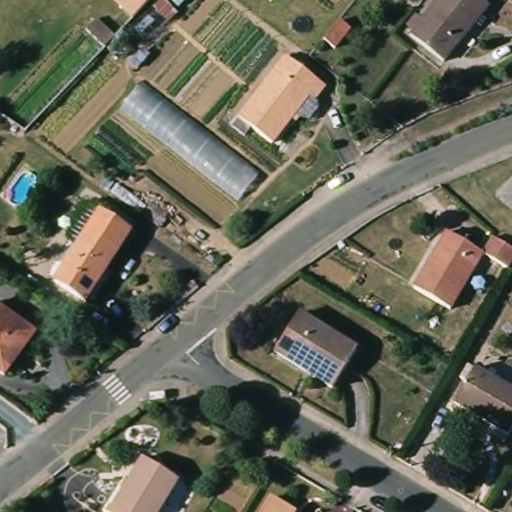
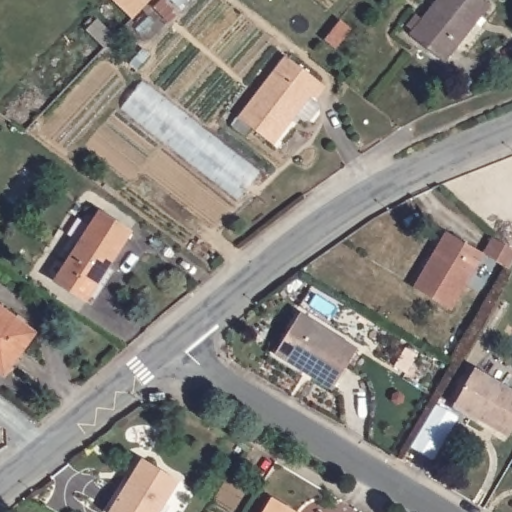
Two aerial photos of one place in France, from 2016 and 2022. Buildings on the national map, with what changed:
unchanged [(156,0),(135,22),(114,0),(156,0)]
unchanged [(487,4),(442,61),(408,34),(436,0),(482,0),(487,4)]
unchanged [(343,23),(353,32),(337,53),(327,44),(343,23)]
unchanged [(323,91),(314,103),(307,99),(270,147),(236,120),(283,60),(323,91)]
unchanged [(130,232),(85,300),(54,279),(98,211),(130,232)]
unchanged [(512,248),(512,260),(506,270),(481,255),(495,232),(512,248)]
unchanged [(412,291),(445,233),(481,255),(447,313),(412,291)]
unchanged [(6,373),(0,369),(0,312),(32,334),(6,373)]
unchanged [(297,317),(354,351),(332,389),(274,356),(297,317)]
unchanged [(506,441),(452,410),(465,388),(456,382),(464,368),(473,373),(512,395),(512,431),(506,441)]
unchanged [(156,512),(106,512),(140,459),(175,481),(156,512)]
unchanged [(293,512),(261,512),(269,498),(293,512)]

